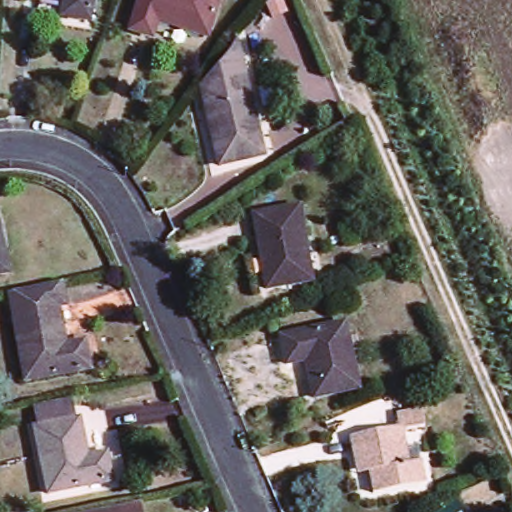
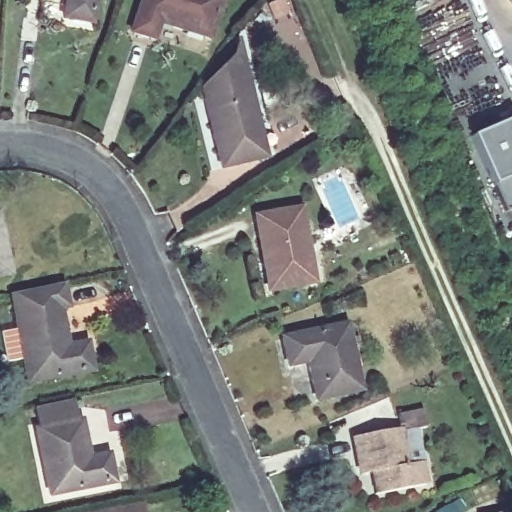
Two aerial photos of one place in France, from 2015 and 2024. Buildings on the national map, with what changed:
unchanged [(62,18),(64,0),(94,0),(90,23),(62,18)]
unchanged [(158,24),(153,40),(130,32),(140,0),(221,0),(207,39),(158,24)]
unchanged [(237,40),(267,160),(222,167),(198,91),(237,40)]
new [(512,207),(502,211),(469,135),(512,116),(512,207)]
unchanged [(267,291),(253,215),(298,207),(313,283),(267,291)]
unchanged [(8,274),(0,276),(0,230),(8,274)]
unchanged [(67,312),(60,313),(66,351),(85,347),(90,377),(25,388),(10,299),(46,291),(62,287),(67,312)]
unchanged [(360,390),(313,400),(305,363),(287,366),(281,337),(345,324),(360,390)]
unchanged [(39,408),(77,399),(82,422),(85,421),(92,459),(112,456),(118,484),(53,496),(37,408),(39,408)]
unchanged [(422,424),(402,429),(400,415),(420,410),(422,424)]
unchanged [(358,474),(352,438),(402,429),(410,465),(420,463),(424,482),(373,492),(362,494),(358,474)]
unchanged [(142,502),(144,512),(97,512),(142,502)]

